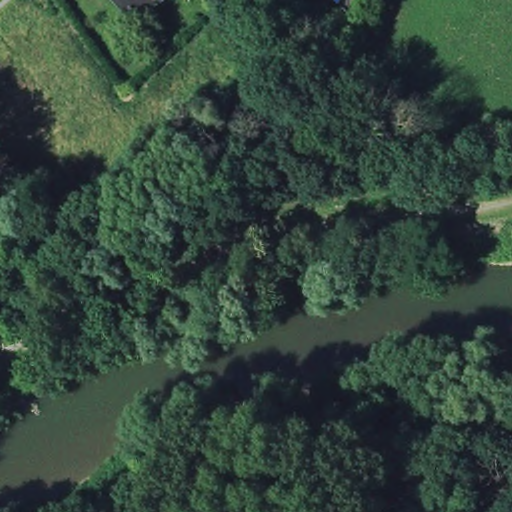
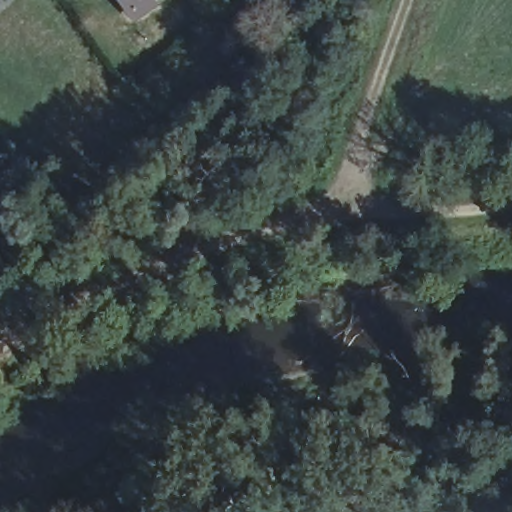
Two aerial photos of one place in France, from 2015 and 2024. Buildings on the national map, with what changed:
unchanged [(179,0),(145,25),(127,0),(179,0)]

